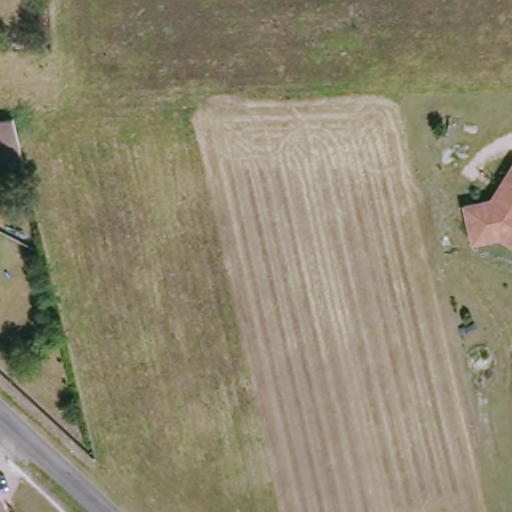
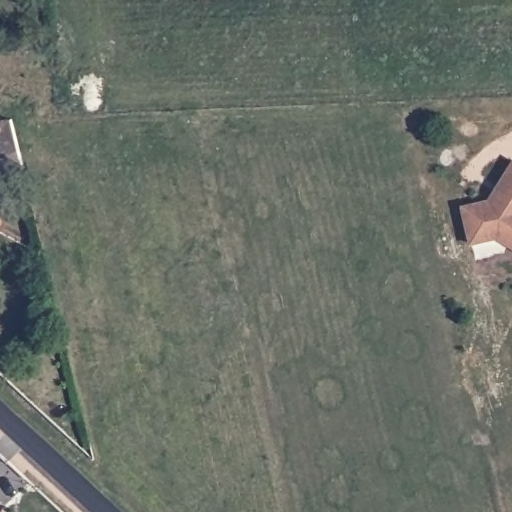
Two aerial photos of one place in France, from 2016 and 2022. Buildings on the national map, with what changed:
unchanged [(23,167),(2,169),(0,162),(0,119),(11,118),(23,167)]
unchanged [(499,235),(473,240),(463,203),(491,196),(512,161),(512,243),(499,235)]

